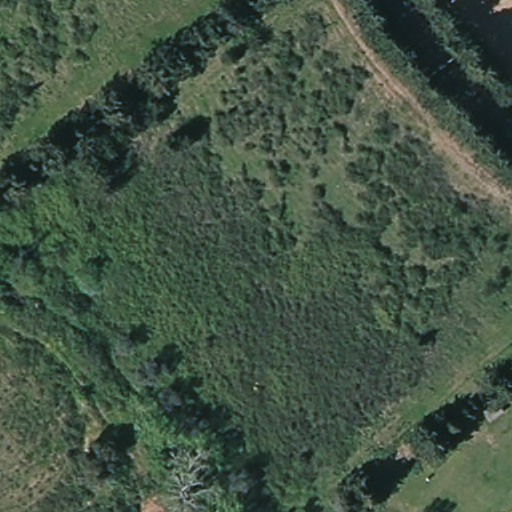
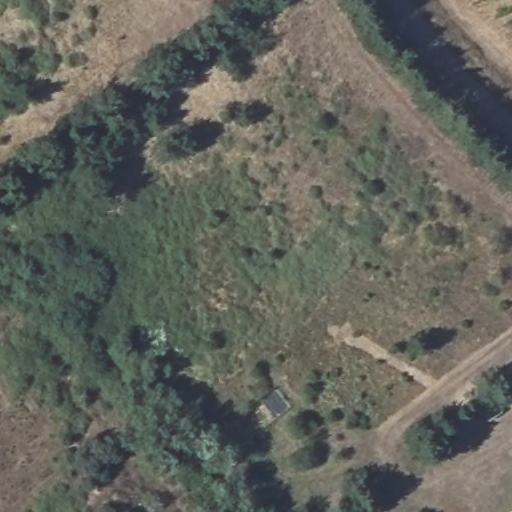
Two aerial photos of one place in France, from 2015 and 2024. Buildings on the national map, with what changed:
unchanged [(504,412),(491,422),(483,412),(497,402),(504,412)]

